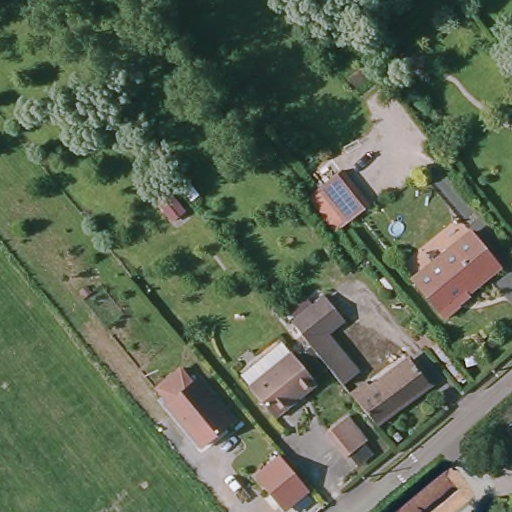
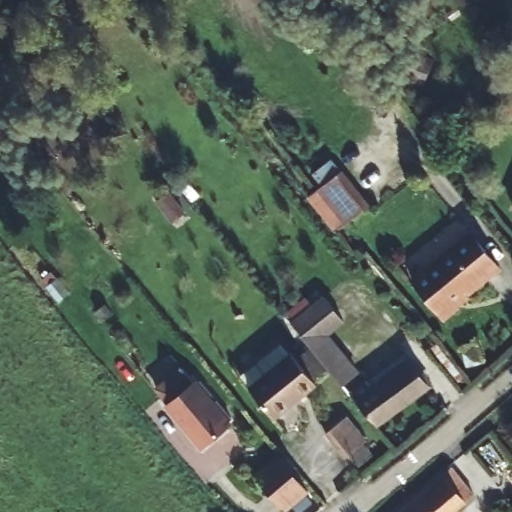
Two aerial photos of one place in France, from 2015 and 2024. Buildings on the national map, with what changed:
unchanged [(333,158),(363,195),(343,211),(313,174),(333,158)]
unchanged [(499,266),(457,301),(461,306),(445,320),(414,282),(471,233),(499,266)]
unchanged [(317,285),(322,292),(335,308),(317,323),(347,361),(331,374),(286,319),(282,313),(317,285)]
unchanged [(278,426),(245,383),(266,365),(285,349),(296,361),(321,392),(278,426)]
unchanged [(367,384),(370,388),(391,372),(394,376),(415,360),(435,385),(373,429),(365,420),(348,398),(367,384)]
unchanged [(228,426),(201,447),(167,406),(193,385),(228,426)]
unchanged [(367,442),(346,458),(326,433),(345,418),(367,442)]
unchanged [(284,511),(255,475),(279,455),(310,492),(284,511)]
unchanged [(450,469),(468,494),(446,512),(400,512),(450,469)]

